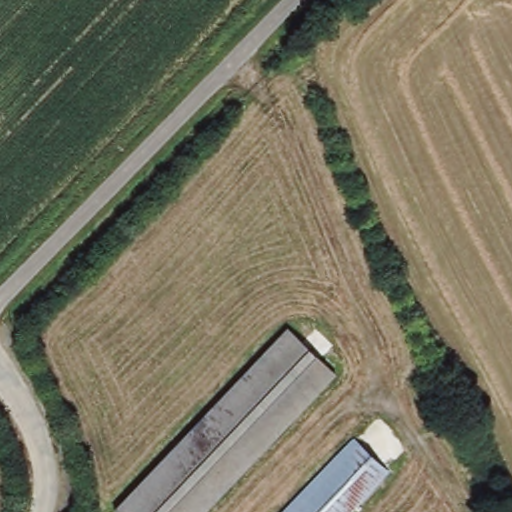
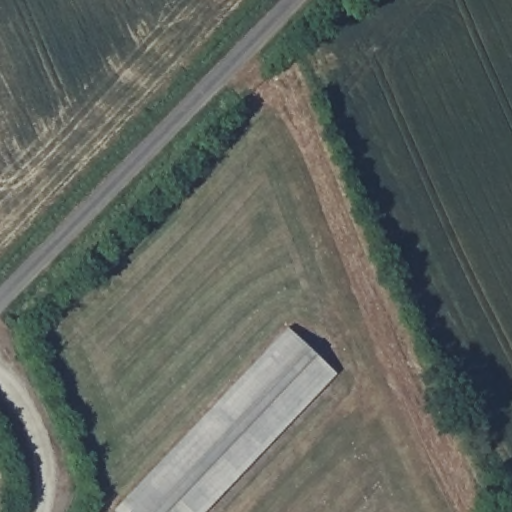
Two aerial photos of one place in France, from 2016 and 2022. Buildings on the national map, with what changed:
unchanged [(338,371),(208,512),(135,512),(133,511),(133,512),(115,512),(287,325),(338,371)]
demolished [(394,470),(354,512),(284,512),(358,436),(394,470)]

